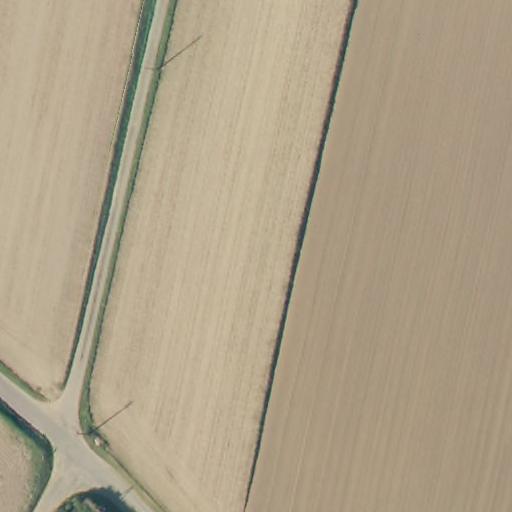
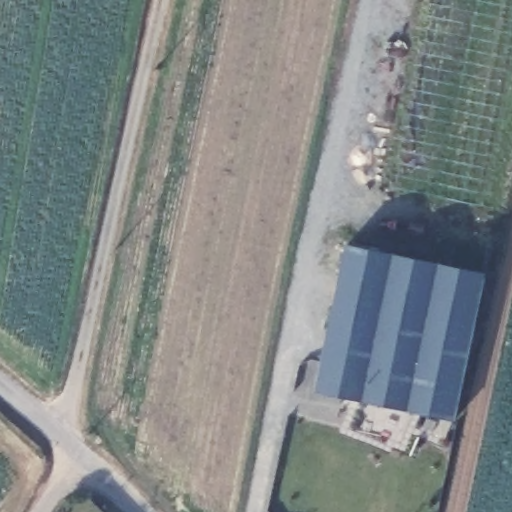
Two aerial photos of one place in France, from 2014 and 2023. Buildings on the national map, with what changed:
new [(455,421),(315,393),(347,242),(486,274),(455,421)]

